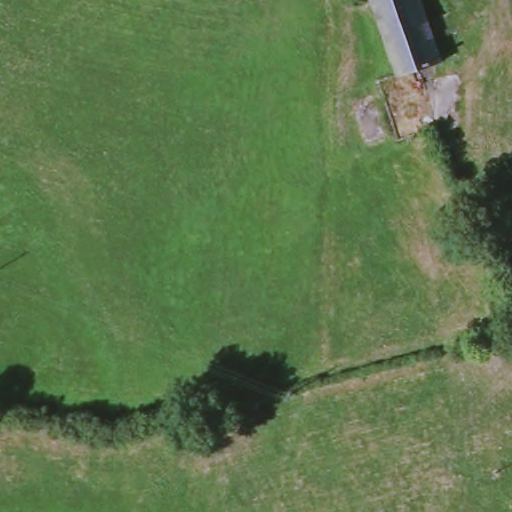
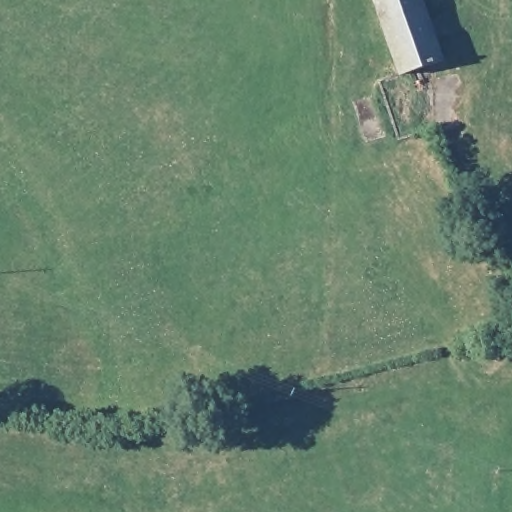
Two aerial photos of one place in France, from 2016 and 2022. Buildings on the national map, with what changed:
unchanged [(405,80),(375,0),(425,0),(447,68),(405,80)]

